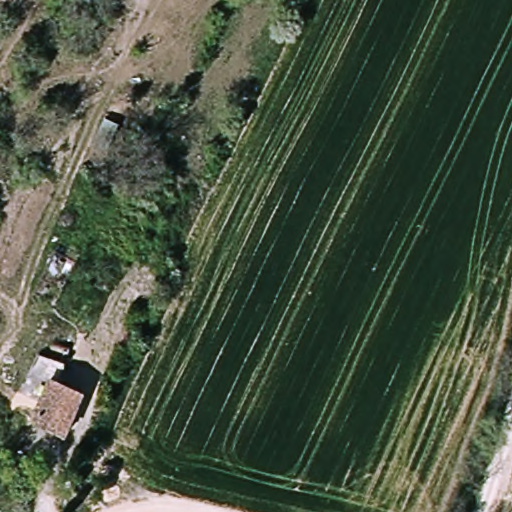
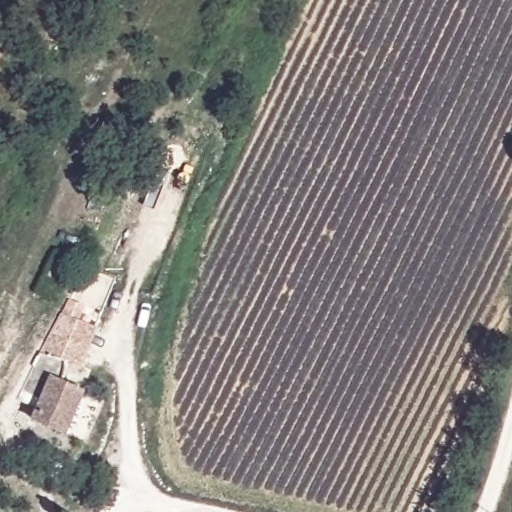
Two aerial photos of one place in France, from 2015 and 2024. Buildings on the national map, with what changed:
new [(63,313),(69,298),(86,306),(80,319),(100,327),(81,370),(69,365),(39,352),(63,313)]
unchanged [(30,420),(38,400),(19,393),(39,352),(69,365),(62,384),(80,392),(63,432),(30,420)]

